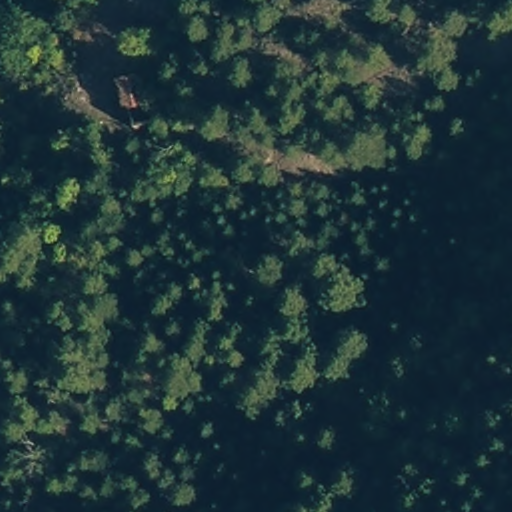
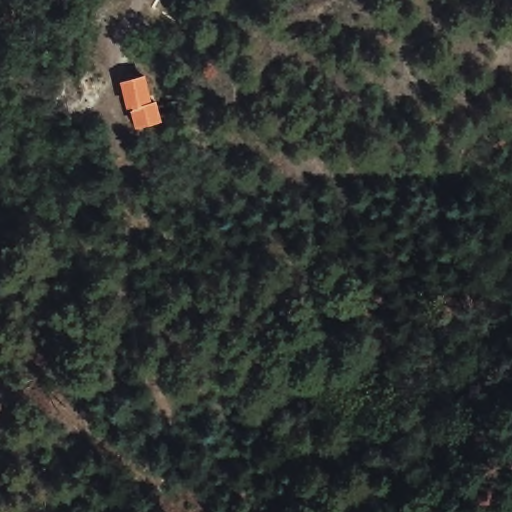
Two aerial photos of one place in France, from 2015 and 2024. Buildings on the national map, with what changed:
new [(204,20),(183,10),(188,0),(214,0),(204,20)]
new [(129,100),(127,101),(125,96),(128,96),(127,90),(124,90),(122,80),(148,74),(155,102),(159,101),(164,121),(135,128),(129,100)]
demolished [(145,75),(152,102),(129,108),(120,79),(145,75)]

